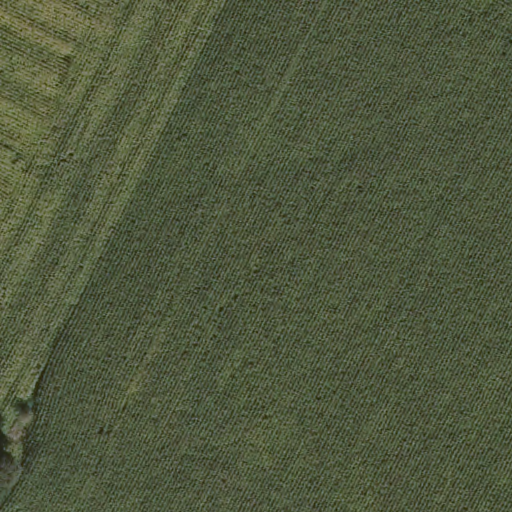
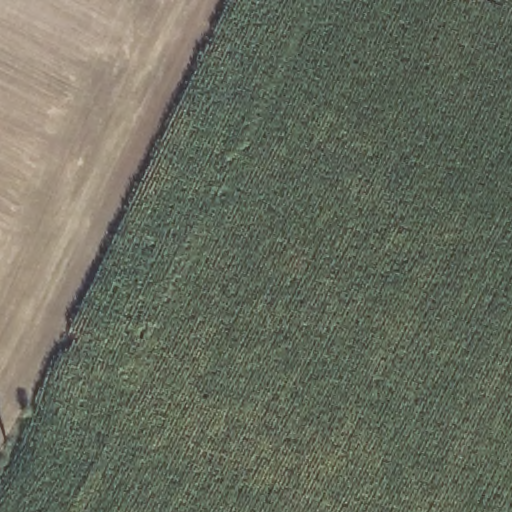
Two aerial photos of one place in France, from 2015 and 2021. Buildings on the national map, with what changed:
[]

